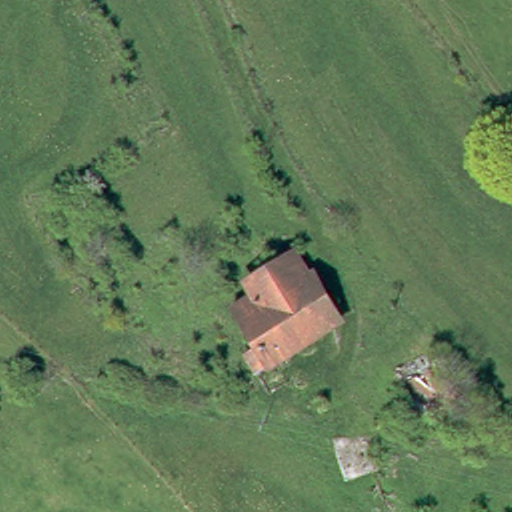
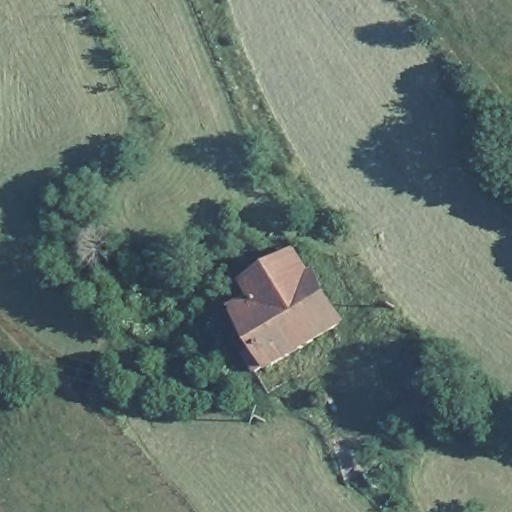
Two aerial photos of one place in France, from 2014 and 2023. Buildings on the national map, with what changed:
unchanged [(290,381),(270,395),(243,350),(255,342),(231,301),(249,290),(242,280),(295,247),(340,320),(277,361),(290,381)]
unchanged [(397,370),(428,357),(447,403),(417,416),(397,370)]

